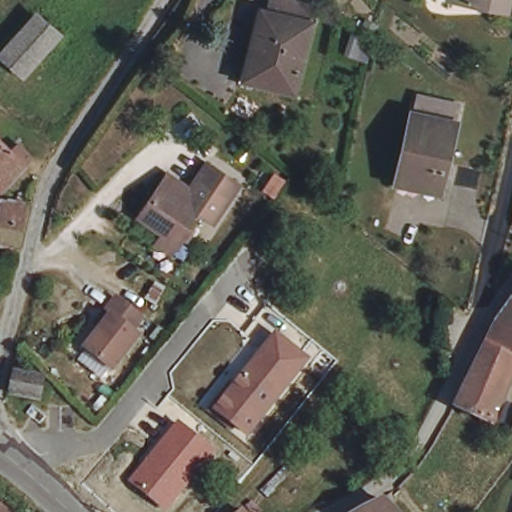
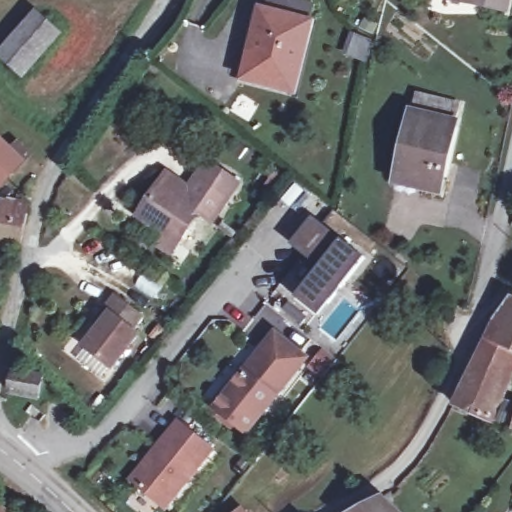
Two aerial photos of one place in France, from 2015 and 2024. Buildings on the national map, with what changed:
unchanged [(451,0),(508,0),(505,16),(451,0)]
unchanged [(310,16),(306,37),(255,26),(260,5),(310,16)]
unchanged [(54,32),(20,76),(0,60),(33,16),(54,32)]
unchanged [(306,37),(292,102),(240,90),(255,26),(306,37)]
unchanged [(392,188),(404,123),(407,106),(451,115),(448,131),(436,197),(392,188)]
unchanged [(5,148),(14,141),(25,151),(0,177),(0,142),(5,148)]
unchanged [(149,229),(140,223),(152,206),(170,183),(188,196),(207,170),(235,190),(210,226),(200,219),(177,249),(170,260),(157,249),(164,239),(149,229)]
unchanged [(23,209),(27,209),(21,242),(0,238),(0,205),(23,209)]
new [(306,217),(359,256),(315,315),(292,297),(300,285),(319,262),(289,240),(306,217)]
unchanged [(147,319),(135,334),(142,339),(117,371),(90,352),(106,332),(100,327),(110,313),(120,299),(147,319)]
unchanged [(512,307),(512,334),(505,331),(512,307)]
unchanged [(512,334),(512,350),(510,356),(499,385),(508,388),(504,400),(495,396),(493,401),(486,422),(452,409),(490,325),(505,331),(512,334)]
unchanged [(309,359),(247,436),(215,409),(275,331),(309,359)]
unchanged [(512,350),(512,356),(510,356),(512,350)]
unchanged [(38,383),(36,402),(6,398),(9,378),(38,383)]
unchanged [(512,408),(512,431),(486,422),(493,401),(512,408)]
unchanged [(177,420),(216,452),(167,512),(129,482),(177,420)]
unchanged [(386,512),(372,512),(382,508),(386,512)]
unchanged [(242,511),(243,512),(240,512),(242,511)]

